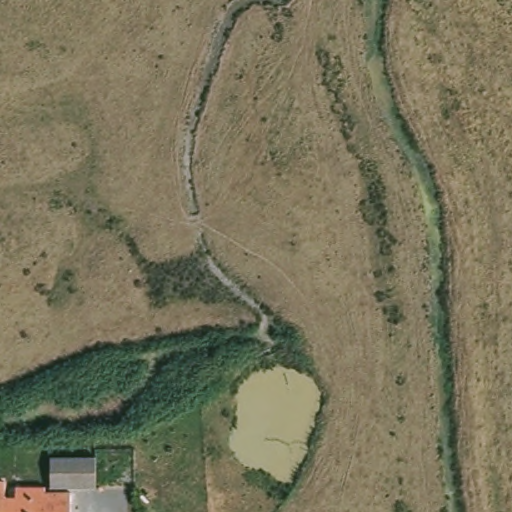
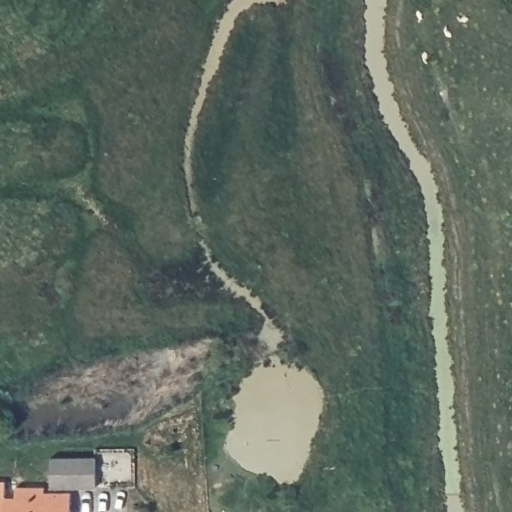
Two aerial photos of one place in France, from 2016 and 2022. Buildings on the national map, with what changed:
unchanged [(44,486),(44,455),(90,455),(90,486),(44,486)]
unchanged [(3,473),(3,489),(14,489),(14,479),(29,479),(29,491),(66,491),(66,512),(0,512),(0,473),(3,473)]

